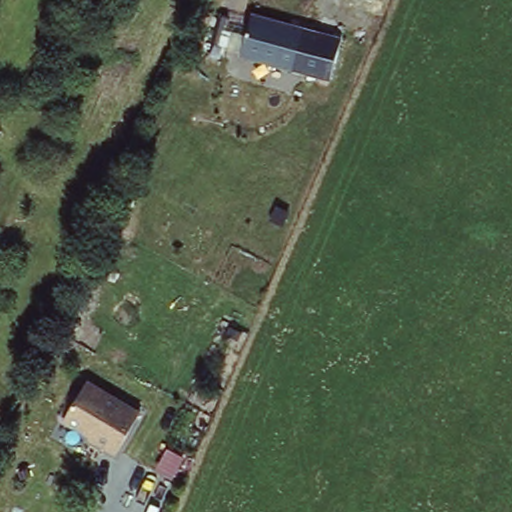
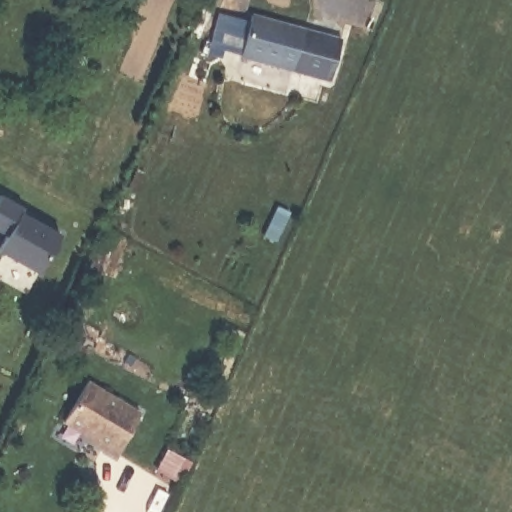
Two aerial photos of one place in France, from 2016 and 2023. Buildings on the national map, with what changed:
unchanged [(329,79),(239,55),(240,49),(217,45),(223,17),(250,24),(252,13),(341,39),(329,79)]
new [(5,229),(0,227),(0,189),(1,188),(27,204),(24,208),(58,229),(38,267),(0,248),(0,237),(5,229)]
unchanged [(146,406),(122,446),(95,431),(96,429),(70,413),(92,375),(146,406)]

